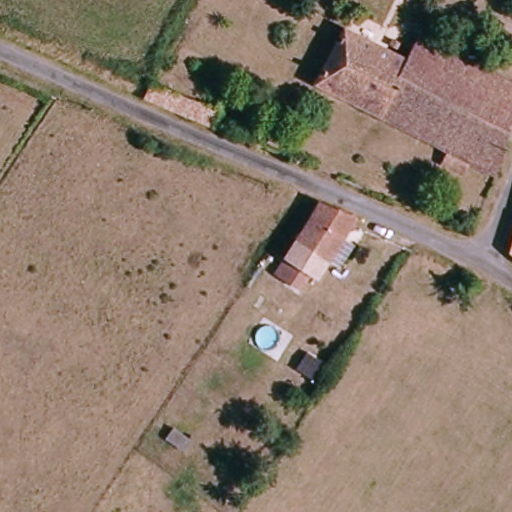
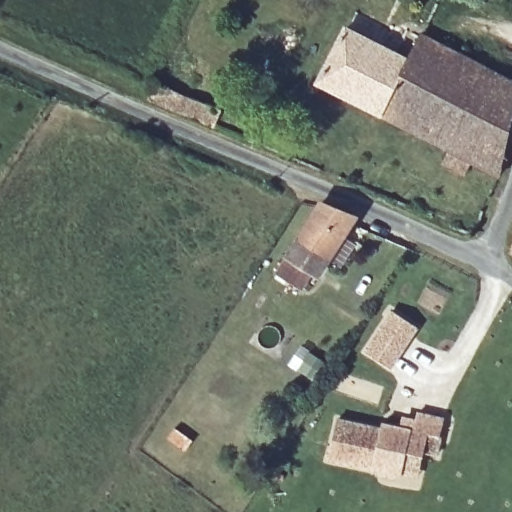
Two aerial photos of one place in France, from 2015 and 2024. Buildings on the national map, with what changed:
unchanged [(494,172),(463,157),(459,166),(438,156),(443,147),(316,81),(345,27),(406,57),(419,36),(512,83),(512,97),(494,172)]
unchanged [(149,100),(150,95),(154,85),(211,105),(202,125),(149,100)]
unchanged [(346,217),(311,275),(300,269),(293,281),(273,269),(315,198),(346,217)]
unchanged [(505,253),(512,232),(512,258),(505,253)]
new [(394,309),(418,326),(402,350),(392,365),(367,348),(377,333),(394,309)]
new [(402,473),(401,476),(328,459),(337,418),(382,428),(383,423),(403,427),(405,418),(417,420),(418,413),(442,419),(440,435),(441,436),(437,456),(425,452),(423,457),(420,477),(402,473)]

